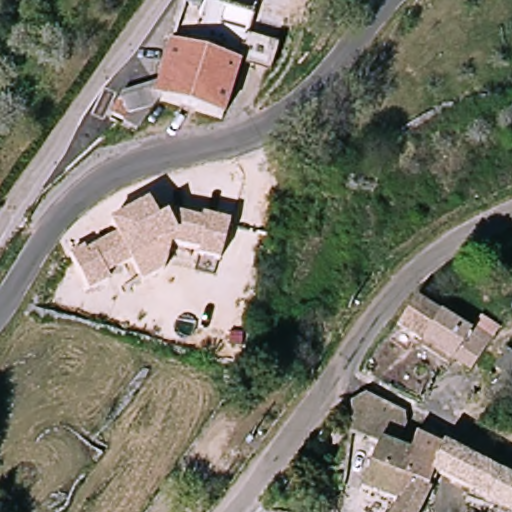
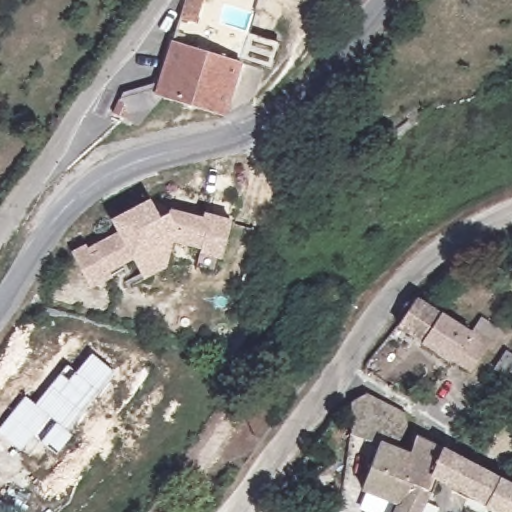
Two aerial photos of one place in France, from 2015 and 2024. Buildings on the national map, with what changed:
unchanged [(223,119),(165,103),(133,129),(108,114),(115,99),(158,84),(184,0),(224,0),(256,9),(253,32),(289,44),(272,78),(239,68),(223,119)]
new [(259,0),(256,9),(224,0),(259,0)]
unchanged [(157,214),(170,208),(200,217),(201,212),(228,219),(218,255),(198,249),(198,247),(171,239),(163,265),(141,276),(130,255),(105,268),(108,274),(87,284),(69,250),(83,243),(85,247),(117,230),(110,217),(148,198),(157,214)]
unchanged [(484,349),(469,375),(397,330),(416,304),(419,307),(484,349)]
unchanged [(497,368),(508,349),(512,352),(512,377),(497,368)]
new [(21,449),(0,433),(0,427),(25,396),(35,404),(68,364),(75,372),(91,353),(114,371),(68,431),(72,433),(55,454),(41,442),(33,434),(21,449)]
unchanged [(399,506),(361,491),(374,445),(346,437),(351,412),(351,408),(366,397),(406,416),(408,429),(397,454),(401,457),(389,489),(421,504),(418,512),(396,512),(399,506)]
unchanged [(414,462),(422,444),(438,452),(449,458),(512,489),(512,512),(466,512),(460,509),(465,499),(431,483),(421,504),(389,489),(401,457),(414,462)]

